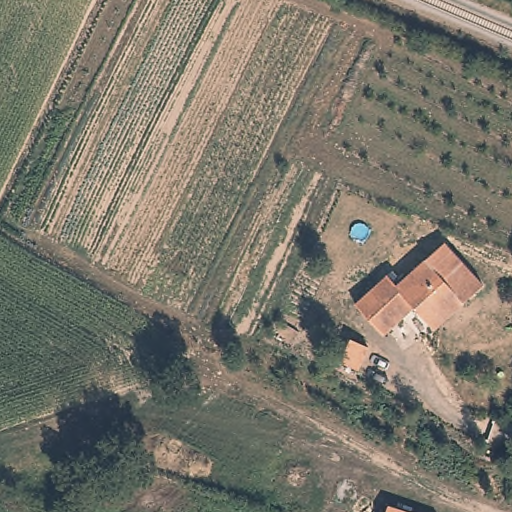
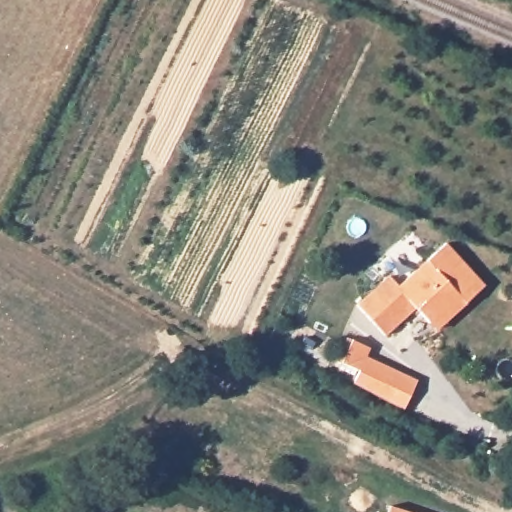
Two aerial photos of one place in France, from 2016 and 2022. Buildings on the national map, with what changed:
unchanged [(428,318),(414,303),(383,331),(368,289),(387,271),(397,282),(445,239),(483,281),(464,298),(434,325),(428,318)]
new [(403,410),(352,384),(357,371),(340,362),(346,349),(351,340),(368,348),(364,356),(416,381),(403,410)]
unchanged [(389,506),(408,512),(387,512),(389,506)]

